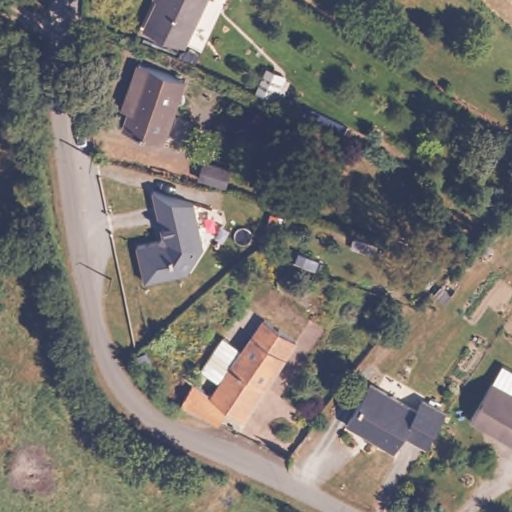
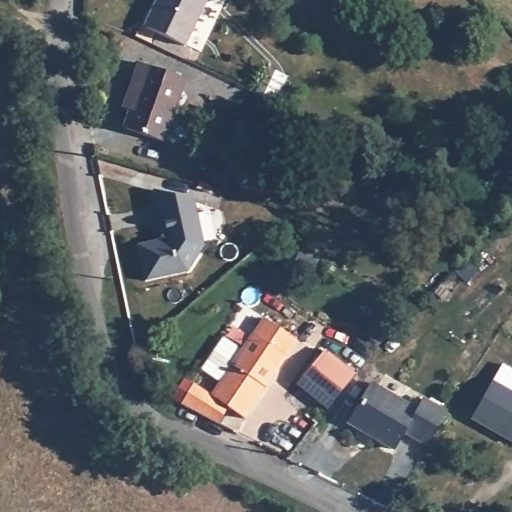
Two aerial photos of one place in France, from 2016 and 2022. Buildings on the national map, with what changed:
unchanged [(165,0),(213,0),(185,58),(146,38),(165,0)]
unchanged [(168,141),(130,131),(140,96),(131,93),(141,66),(186,80),(168,141)]
unchanged [(198,180),(204,164),(230,173),(225,189),(198,180)]
unchanged [(154,194),(194,205),(206,248),(190,273),(148,283),(139,248),(160,243),(164,236),(154,194)]
unchanged [(325,258),(315,277),(287,261),(298,244),(325,258)]
demolished [(326,296),(316,315),(288,300),(299,282),(326,296)]
unchanged [(218,397),(225,386),(206,373),(227,340),(247,353),(269,321),(296,339),(246,418),(233,412),(223,427),(192,407),(203,389),(218,397)]
new [(327,409),(298,384),(327,350),(355,374),(327,409)]
unchanged [(477,421),(507,366),(512,368),(512,439),(477,421)]
unchanged [(409,429),(399,447),(351,421),(373,381),(420,407),(426,396),(449,409),(432,440),(431,442),(409,429)]

